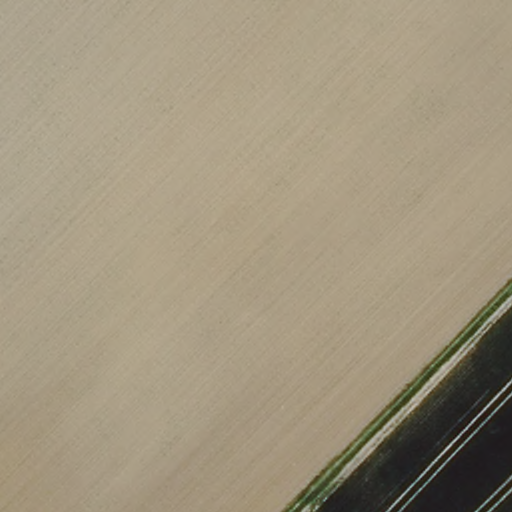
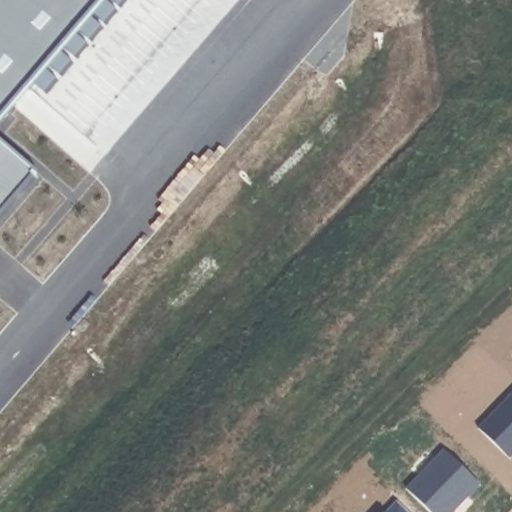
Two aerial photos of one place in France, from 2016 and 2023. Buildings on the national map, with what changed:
new [(0,0),(116,0),(0,134),(0,0)]
new [(0,222),(0,137),(47,177),(0,222)]
new [(512,389),(512,450),(507,455),(477,425),(512,389)]
new [(444,446),(479,480),(449,512),(431,512),(405,486),(444,446)]
new [(396,498),(410,512),(382,512),(396,498)]

